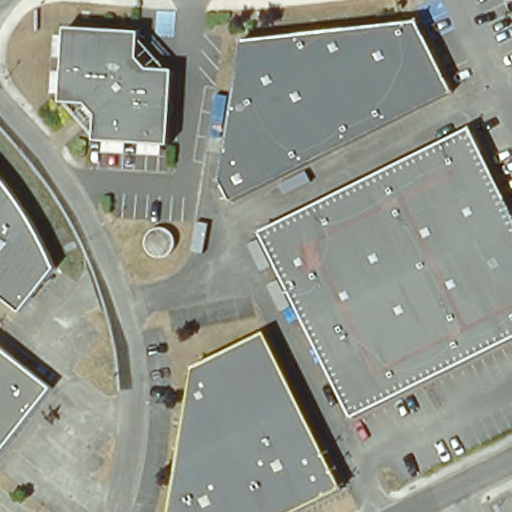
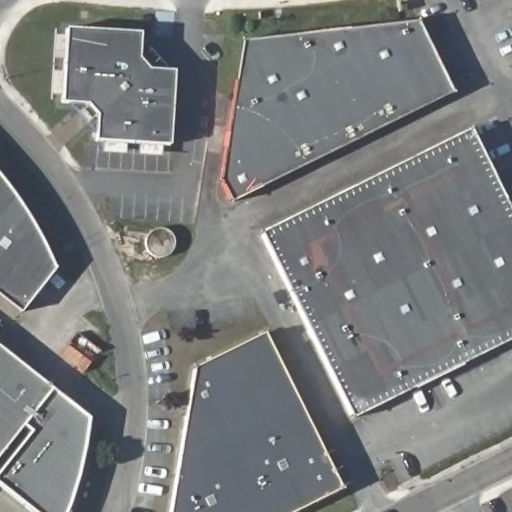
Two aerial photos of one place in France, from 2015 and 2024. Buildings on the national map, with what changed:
unchanged [(226,205),(216,187),(243,44),(415,24),(418,26),(423,38),(432,33),(455,78),(445,82),(452,96),(226,205)]
unchanged [(65,35),(140,40),(139,62),(145,71),(153,79),(173,82),(169,151),(98,146),(99,124),(90,110),(61,105),(65,35)]
unchanged [(471,134),(512,217),(512,346),(353,423),(260,236),(471,134)]
unchanged [(1,179),(9,190),(16,202),(21,212),(29,227),(36,241),(41,252),(44,259),(49,269),(17,309),(0,296),(0,177),(1,179)]
unchanged [(150,249),(151,244),(154,240),(158,239),(163,237),(168,239),(172,241),(175,247),(175,254),(172,258),(168,260),(164,262),(158,261),(155,259),(151,255),(150,249)]
unchanged [(156,512),(183,372),(253,338),(314,456),(333,494),(297,512),(156,512)]
unchanged [(45,392),(0,449),(0,357),(45,392)]
new [(89,422),(85,451),(71,502),(67,512),(34,512),(0,484),(0,472),(32,431),(21,422),(45,392),(89,422)]

